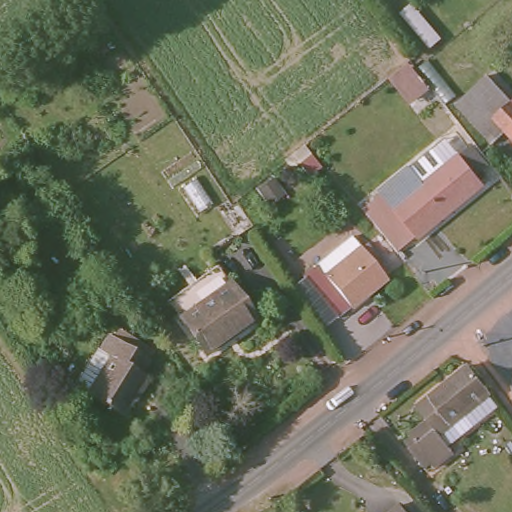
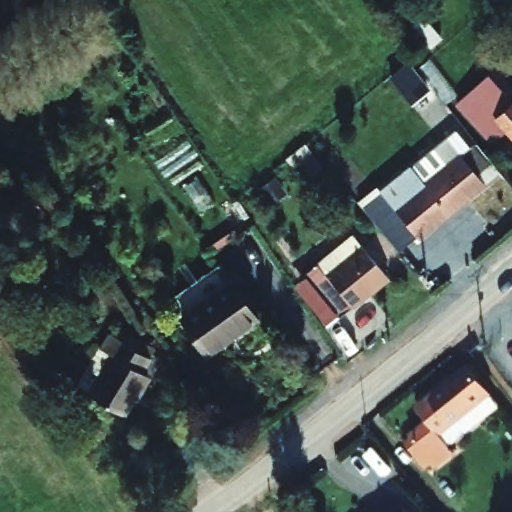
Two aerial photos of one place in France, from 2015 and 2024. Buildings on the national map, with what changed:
unchanged [(457,103),(492,72),(504,86),(512,96),(512,130),(510,128),(490,144),(457,103)]
unchanged [(382,188),(410,165),(428,185),(460,159),(485,187),(422,236),(382,188)]
unchanged [(307,275),(320,262),(332,275),(365,246),(392,277),(345,317),(307,275)]
unchanged [(185,320),(234,286),(256,318),(208,352),(185,320)]
unchanged [(92,383),(120,346),(110,337),(122,324),(156,354),(145,367),(152,373),(122,409),(92,383)]
unchanged [(438,462),(413,431),(431,416),(421,403),(460,372),(480,397),(444,427),(457,446),(438,462)]
unchanged [(401,501),(410,512),(387,512),(401,501)]

